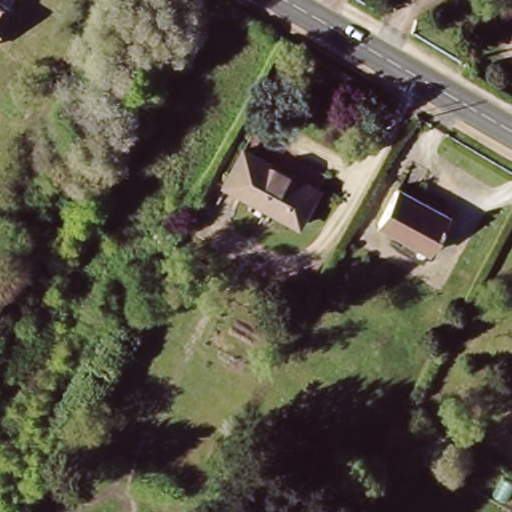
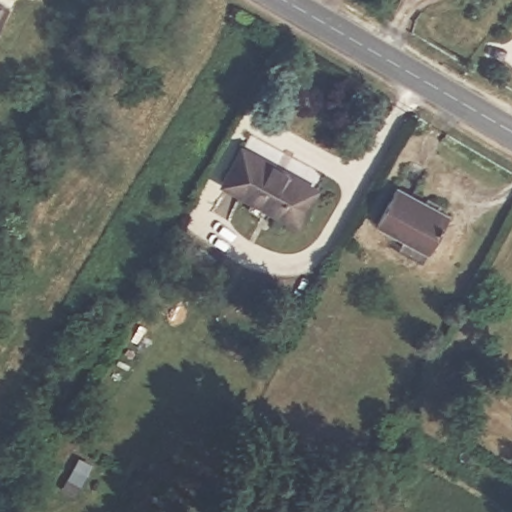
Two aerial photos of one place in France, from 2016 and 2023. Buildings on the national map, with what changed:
unchanged [(1,0),(11,5),(0,23),(0,0),(1,0)]
unchanged [(247,141),(323,182),(303,219),(227,178),(247,141)]
unchanged [(454,210),(435,245),(383,215),(402,181),(454,210)]

